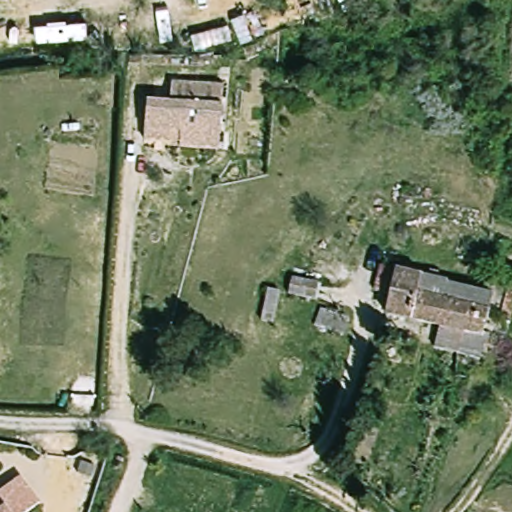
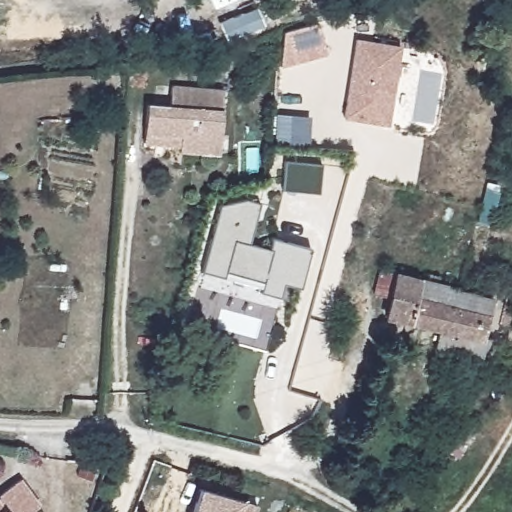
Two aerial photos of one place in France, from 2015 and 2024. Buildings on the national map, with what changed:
new [(321,25),(328,56),(282,66),(285,31),(321,25)]
new [(347,116),(359,40),(403,46),(391,124),(347,116)]
unchanged [(147,134),(149,106),(172,107),(174,89),(225,91),(221,154),(182,151),(183,146),(147,144),(147,134)]
new [(322,164),(319,193),(282,190),(284,160),(322,164)]
new [(269,250),(272,239),(310,250),(301,287),(283,283),(279,298),(259,292),(261,288),(225,279),(201,272),(220,206),(243,198),(259,203),(248,244),(269,250)]
unchanged [(512,269),(512,294),(507,293),(511,269),(512,269)]
unchanged [(478,324),(471,344),(480,350),(473,373),(427,358),(436,333),(385,315),(399,274),(494,307),(487,327),(478,324)]
unchanged [(44,506),(35,512),(0,512),(0,497),(2,497),(24,479),(44,506)]
new [(200,488),(243,500),(257,504),(254,512),(193,512),(200,488)]

